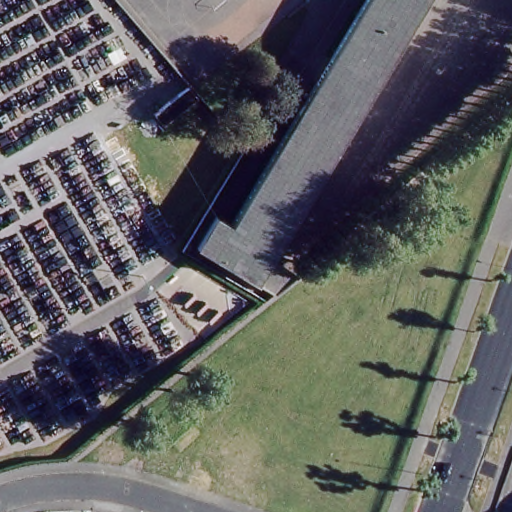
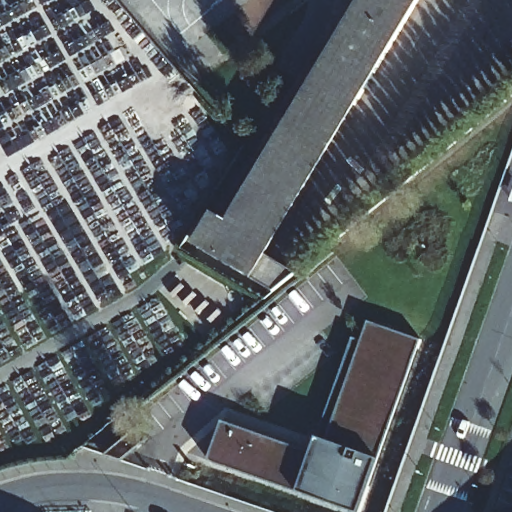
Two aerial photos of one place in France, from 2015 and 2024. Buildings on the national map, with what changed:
unchanged [(191,239),(210,205),(227,215),(348,16),(357,0),(409,0),(260,245),(293,265),(267,286),(191,239)]
new [(409,0),(423,0),(273,252),(260,245),(409,0)]
new [(186,83),(194,94),(160,122),(152,112),(186,83)]
new [(225,417),(316,447),(354,332),(363,335),(370,315),(422,332),(364,508),(214,458),(212,456),(225,417)]
new [(142,424),(152,436),(126,457),(108,452),(142,424)]

